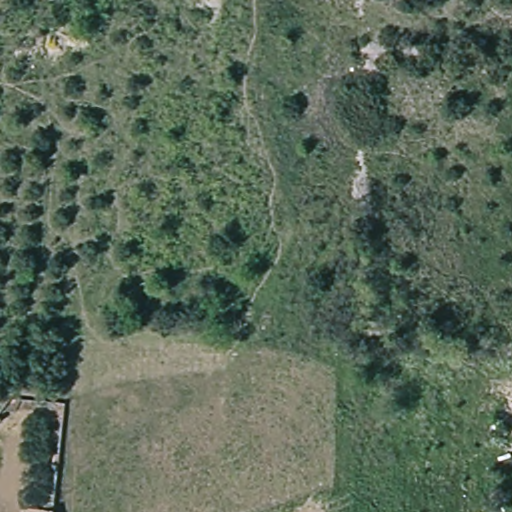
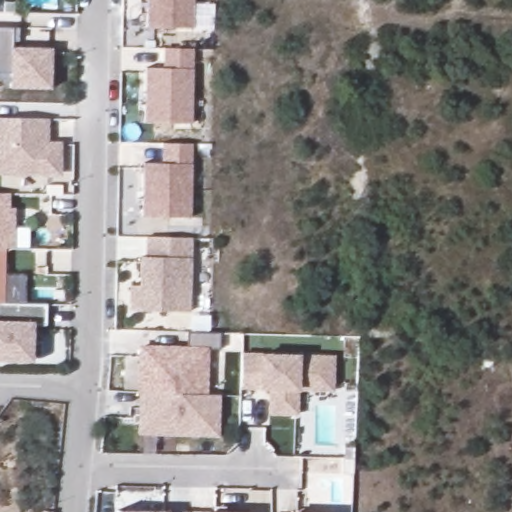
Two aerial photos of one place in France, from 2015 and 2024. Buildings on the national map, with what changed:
new [(144,0),(190,0),(190,28),(167,27),(143,27),(144,0)]
new [(10,29),(11,50),(48,52),(45,92),(5,92),(6,60),(0,60),(0,29),(10,29)]
new [(161,68),(161,48),(190,48),(190,123),(144,124),(143,68),(161,68)]
new [(0,174),(0,118),(50,119),(50,141),(62,142),(60,176),(0,174)]
new [(142,162),(161,162),(162,142),(190,143),(189,217),(141,216),(142,162)]
new [(5,217),(11,217),(10,247),(0,247),(0,192),(6,192),(5,217)]
new [(129,285),(139,285),(140,256),(145,256),(145,236),(189,237),(187,311),(128,310),(129,285)]
new [(1,247),(0,302),(0,247),(1,247)]
new [(38,358),(27,358),(0,358),(0,302),(43,303),(43,323),(28,323),(27,341),(38,341),(38,358)]
new [(187,347),(187,332),(220,332),(220,350),(208,350),(207,395),(220,396),(220,437),(136,436),(138,345),(187,347)]
new [(335,392),(300,391),(298,417),(267,416),(266,391),(259,390),(240,388),(241,352),(260,352),(298,353),(335,357),(335,392)]
unchanged [(26,509),(43,512),(26,512),(26,509)]
new [(186,512),(118,512),(118,509),(168,511),(186,511),(186,512)]
new [(293,510),(304,510),(304,512),(293,512),(293,510)]
new [(186,511),(227,512),(186,512),(186,511)]

